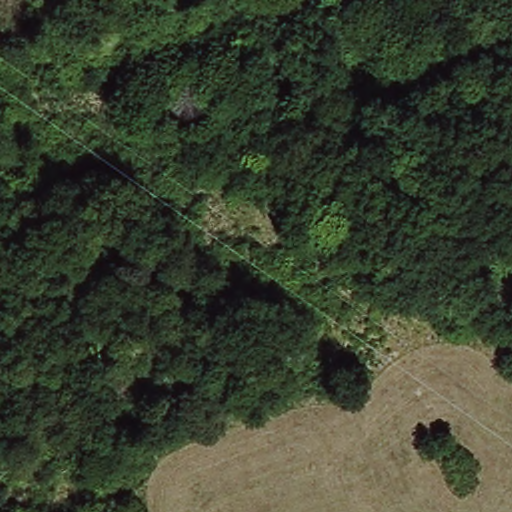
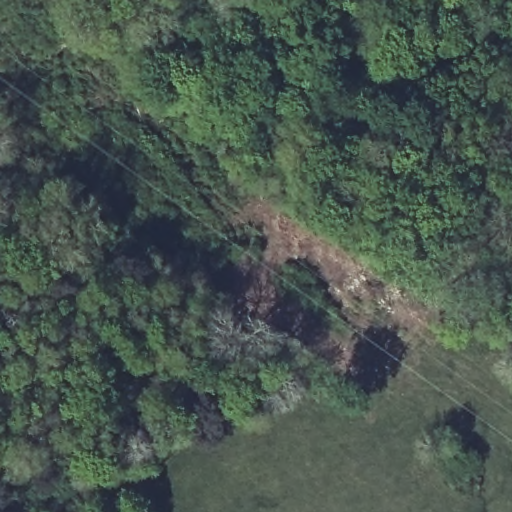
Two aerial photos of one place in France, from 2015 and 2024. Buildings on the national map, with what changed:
[]

